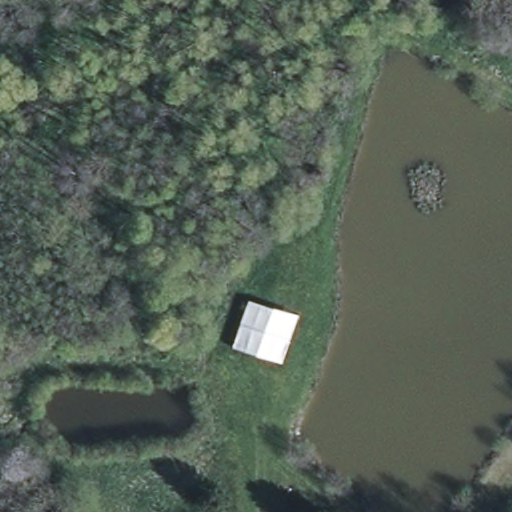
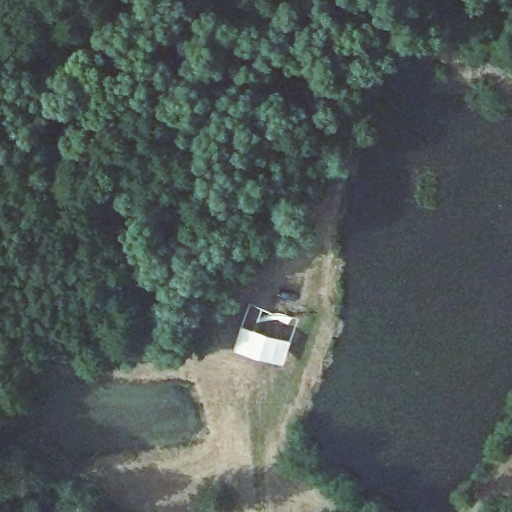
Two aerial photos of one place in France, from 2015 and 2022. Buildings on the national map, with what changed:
unchanged [(297,319),(282,366),(232,351),(247,302),(297,319)]

